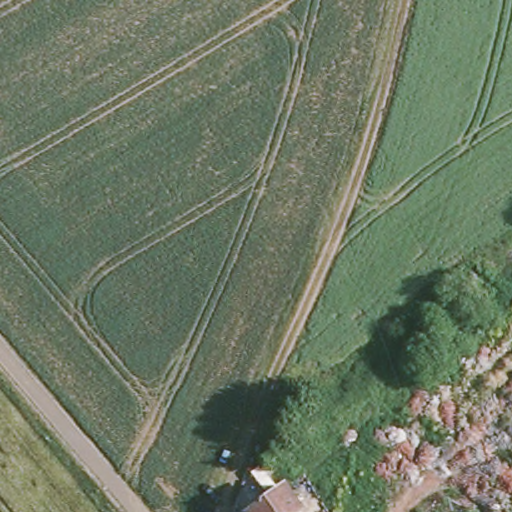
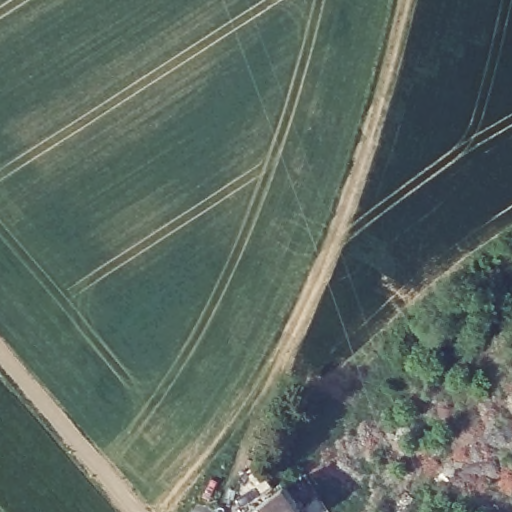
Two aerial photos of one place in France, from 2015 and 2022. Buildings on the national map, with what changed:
unchanged [(282,481),(304,510),(306,512),(251,512),(247,505),(282,481)]

